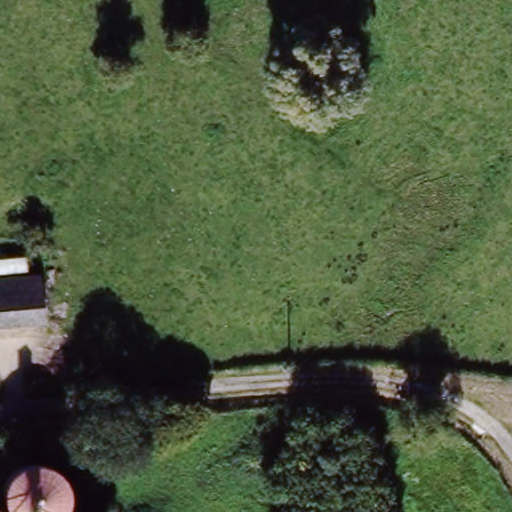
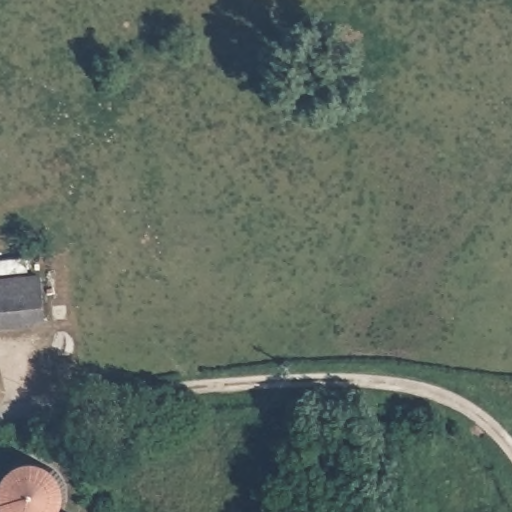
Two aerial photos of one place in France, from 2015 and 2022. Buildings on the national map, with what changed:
unchanged [(0,286),(45,280),(50,319),(1,326),(0,319),(0,286)]
unchanged [(45,461),(57,468),(63,475),(69,487),(67,501),(61,512),(10,512),(5,498),(5,492),(7,481),(10,473),(22,464),(33,460),(45,461)]

